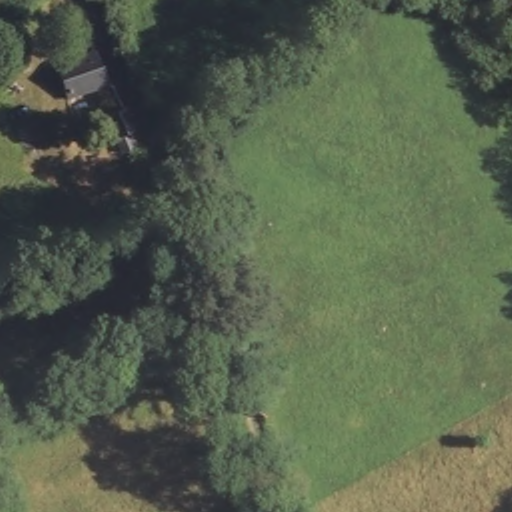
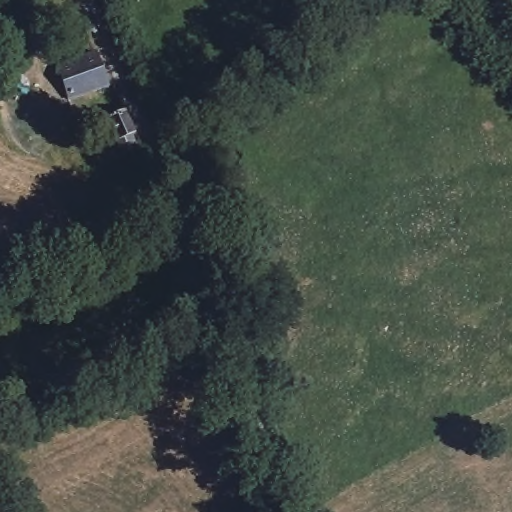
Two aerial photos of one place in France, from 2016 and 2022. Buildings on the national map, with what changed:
unchanged [(102,73),(114,96),(87,110),(60,58),(87,44),(102,73)]

